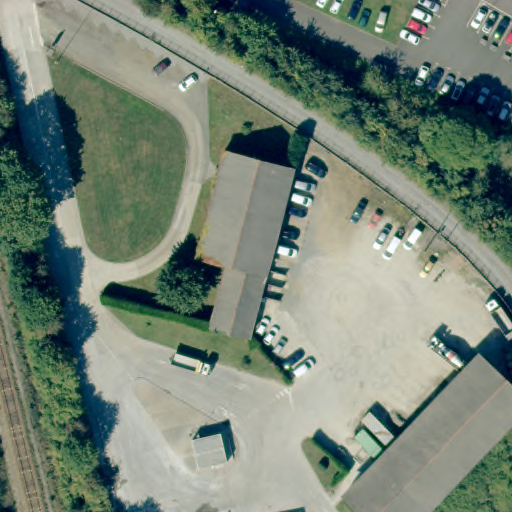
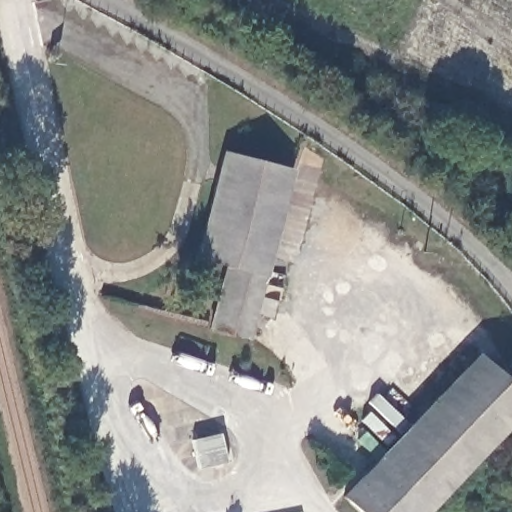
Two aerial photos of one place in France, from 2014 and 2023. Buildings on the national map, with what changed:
unchanged [(290,172),(241,340),(204,330),(222,270),(190,261),(223,154),(290,172)]
unchanged [(512,391),(512,422),(427,512),(354,512),(340,500),(478,358),(512,391)]

